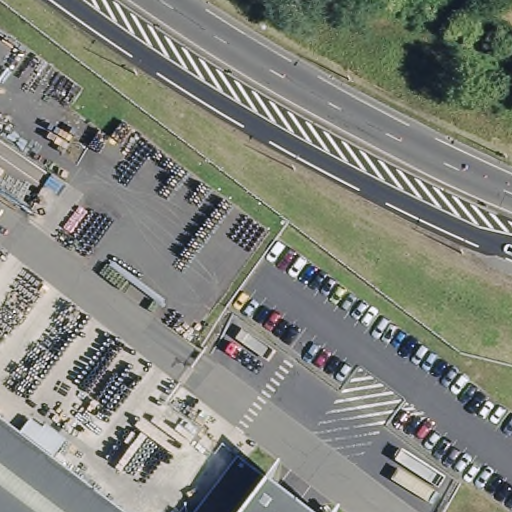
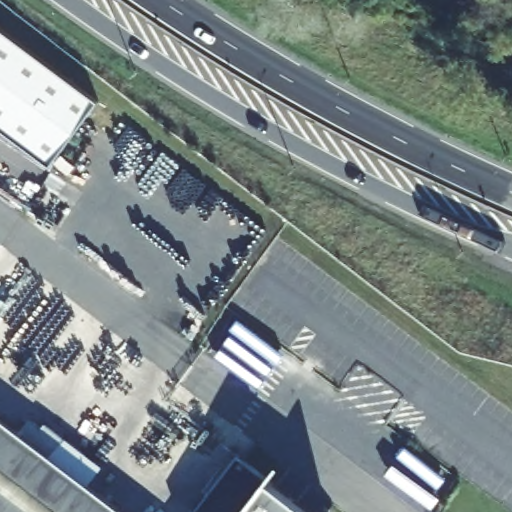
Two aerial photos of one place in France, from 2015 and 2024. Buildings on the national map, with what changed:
new [(0,126),(0,26),(100,100),(51,164),(0,126)]
unchanged [(123,512),(0,512),(0,418),(123,512)]
unchanged [(268,481),(310,512),(195,512),(236,458),(268,481)]

